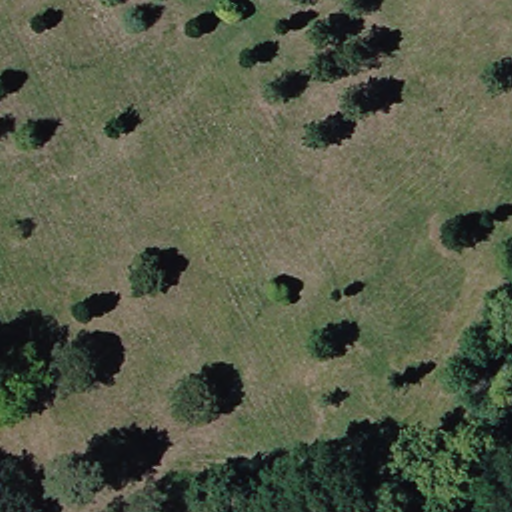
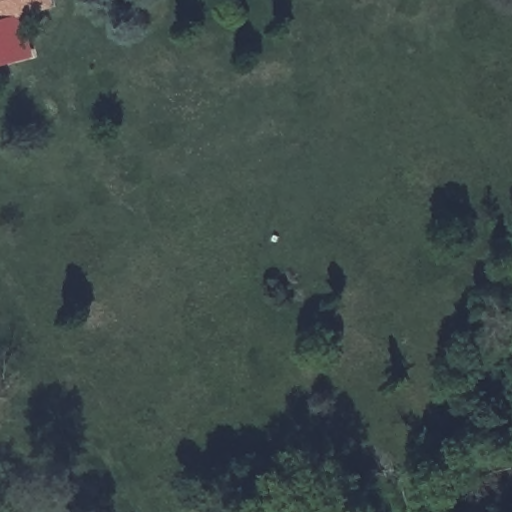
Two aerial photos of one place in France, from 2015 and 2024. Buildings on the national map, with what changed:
new [(0,21),(0,0),(54,0),(56,6),(0,21)]
new [(33,57),(0,66),(0,21),(22,15),(33,57)]

